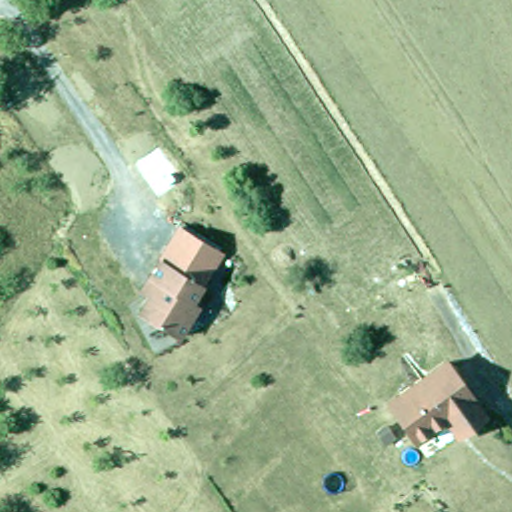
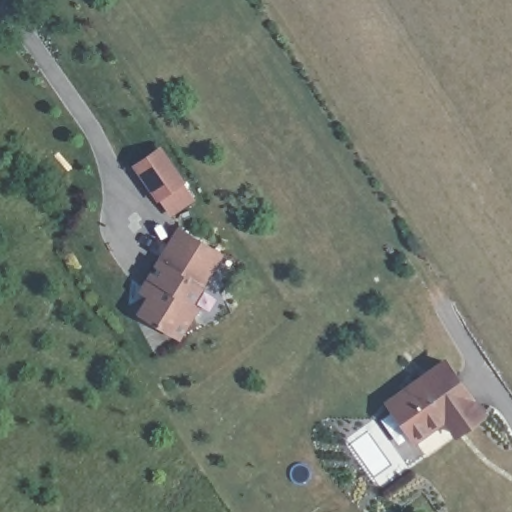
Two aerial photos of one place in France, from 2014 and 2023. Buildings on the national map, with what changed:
new [(185,182),(198,201),(170,219),(158,202),(133,165),(161,146),(185,182)]
unchanged [(148,274),(180,224),(221,249),(190,298),(195,301),(176,334),(139,310),(151,290),(141,285),(148,274)]
unchanged [(459,429),(448,413),(410,439),(384,403),(440,362),(478,415),(459,429)]

